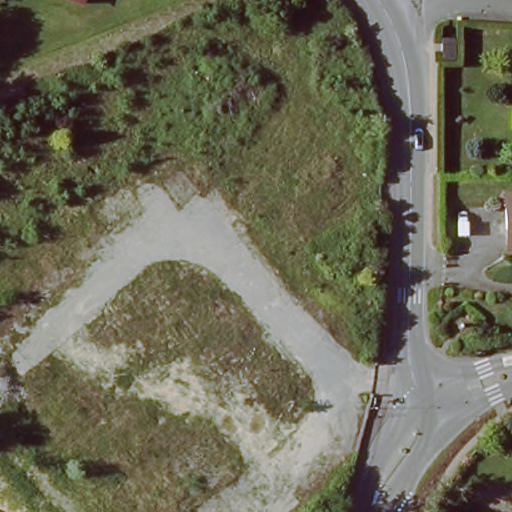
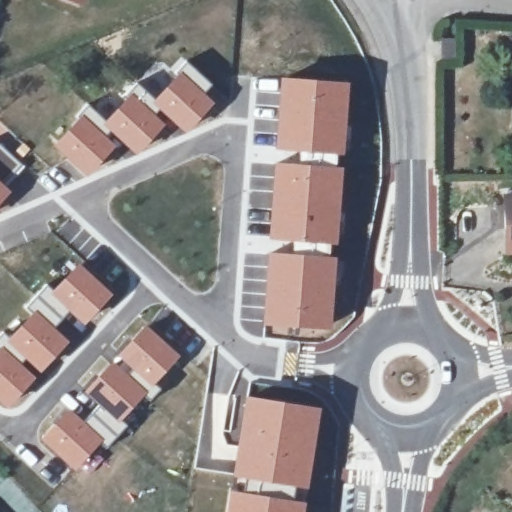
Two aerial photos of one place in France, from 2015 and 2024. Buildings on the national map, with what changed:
unchanged [(79,0),(81,0),(81,1),(79,0)]
new [(186,61),(212,85),(205,92),(215,102),(186,134),(152,102),(186,61)]
new [(280,77),(348,82),(343,155),(338,155),(337,165),(293,160),(293,154),(274,151),(280,77)]
new [(105,120),(132,92),(165,125),(137,156),(120,141),(104,127),(101,124),(105,120)]
new [(87,104),(105,120),(101,124),(104,127),(102,129),(118,145),(87,178),(53,147),(87,104)]
new [(8,129),(0,136),(0,122),(8,129)]
new [(7,187),(0,181),(0,143),(25,165),(7,187)]
new [(273,159),(293,160),(337,165),(343,165),(337,243),(335,243),(335,245),(330,244),(329,254),(289,251),(289,242),(267,240),(273,159)]
new [(7,187),(11,191),(0,203),(0,181),(7,187)]
unchanged [(505,251),(505,201),(512,201),(512,250),(505,251)]
new [(265,250),(289,251),(329,254),(329,255),(335,255),(331,330),(261,326),(265,250)]
new [(24,306),(45,283),(51,289),(79,262),(113,293),(83,326),(69,311),(54,327),(69,341),(39,373),(4,341),(5,341),(31,313),(24,306)]
new [(145,325),(180,355),(149,390),(139,382),(141,378),(117,355),(145,325)]
new [(4,341),(39,373),(7,411),(0,404),(0,345),(4,341)]
new [(100,402),(85,390),(113,361),(139,382),(149,390),(120,420),(125,426),(108,443),(103,438),(75,471),(40,439),(67,407),(83,421),(100,402)]
new [(235,451),(246,394),(320,406),(306,489),(295,487),(293,497),(243,489),(245,479),(232,477),(235,451)]
new [(228,487),(243,489),(293,497),(305,500),(303,512),(224,512),(228,487)]

